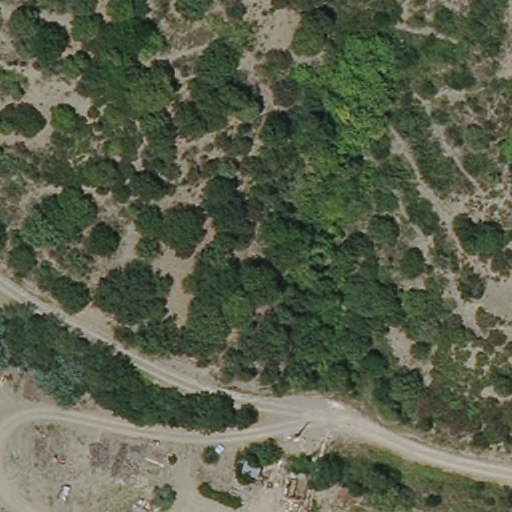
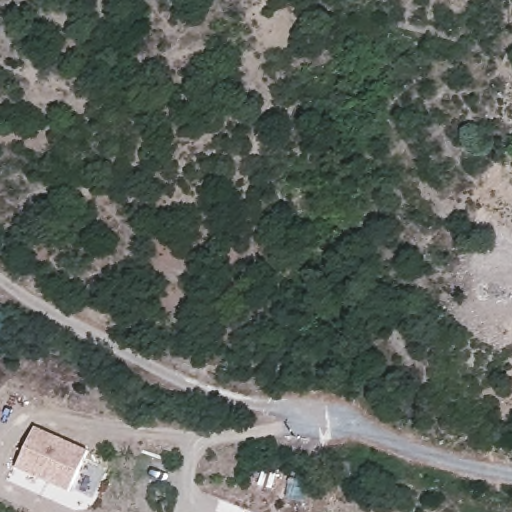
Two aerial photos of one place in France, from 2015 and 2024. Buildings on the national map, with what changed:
new [(16,468),(34,426),(88,450),(69,491),(16,468)]
demolished [(264,474),(281,477),(279,493),(263,490),(264,474)]

